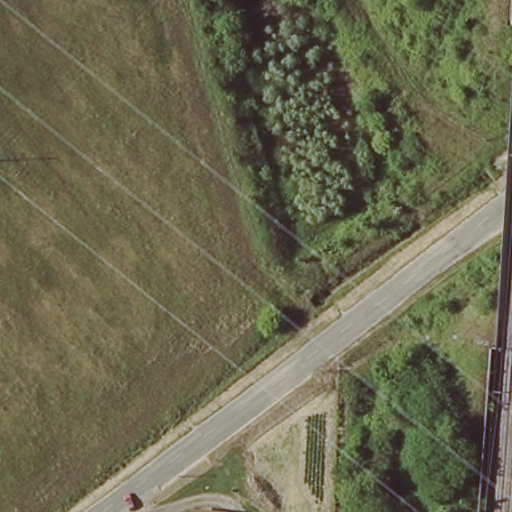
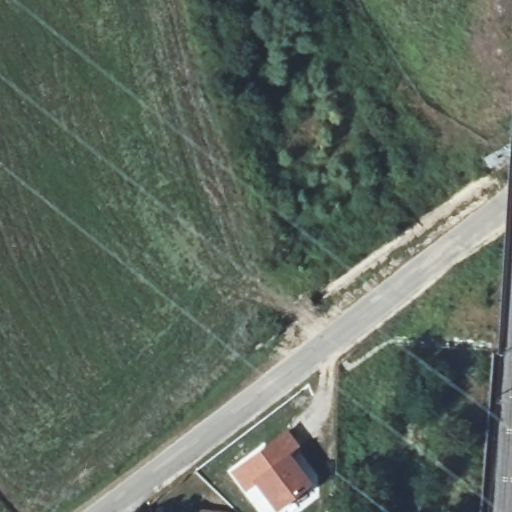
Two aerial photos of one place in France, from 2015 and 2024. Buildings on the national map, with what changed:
new [(288,429),(305,451),(299,456),(315,479),(281,506),(264,483),(252,492),(236,468),(288,429)]

